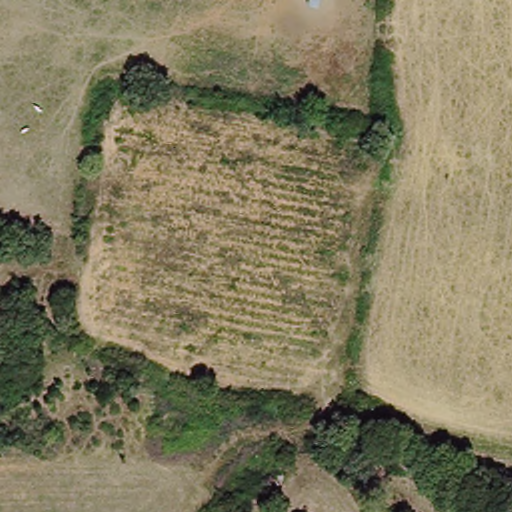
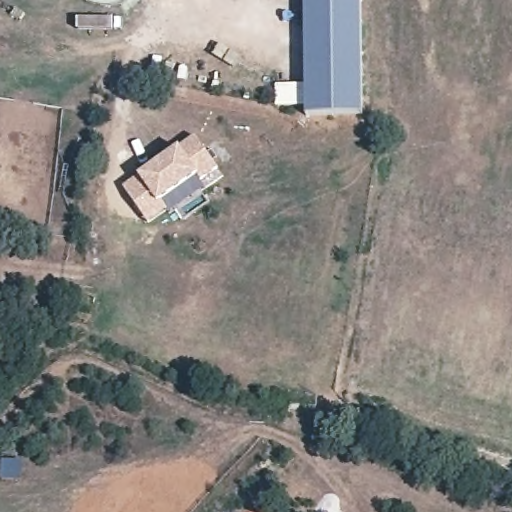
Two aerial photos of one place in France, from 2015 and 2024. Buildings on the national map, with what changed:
new [(359,0),(360,116),(303,116),(302,0),(359,0)]
new [(219,167),(203,179),(199,174),(145,214),(125,187),(195,135),(219,167)]

